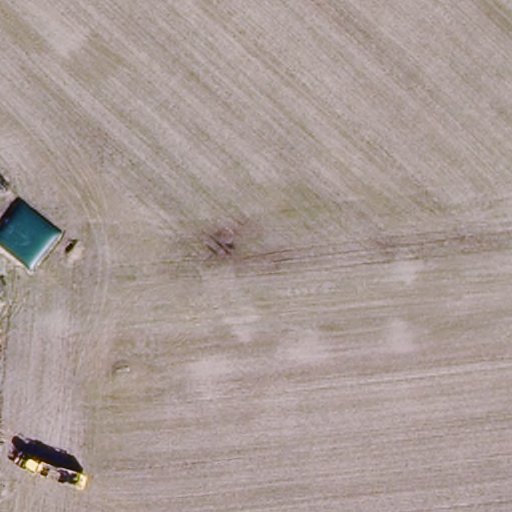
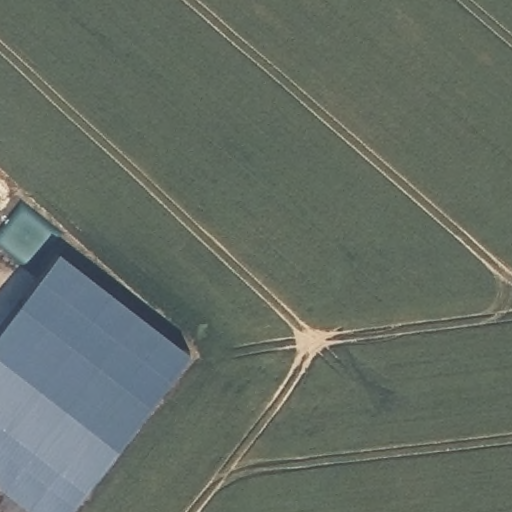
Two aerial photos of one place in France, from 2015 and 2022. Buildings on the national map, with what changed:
new [(53,245),(186,342),(148,394),(15,297),(53,245)]
new [(15,297),(148,394),(86,479),(0,416),(0,317),(15,297)]
new [(86,479),(62,512),(49,512),(0,476),(0,416),(86,479)]

